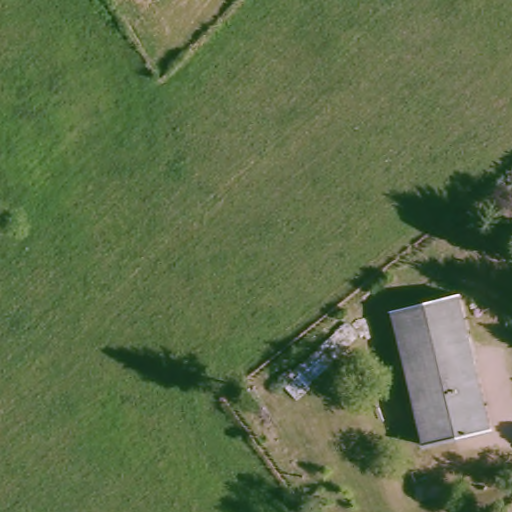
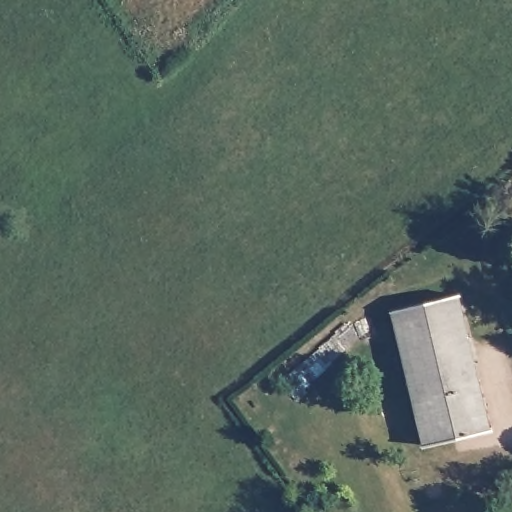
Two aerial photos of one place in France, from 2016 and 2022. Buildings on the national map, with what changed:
unchanged [(451,294),(486,427),(420,443),(387,309),(451,294)]

